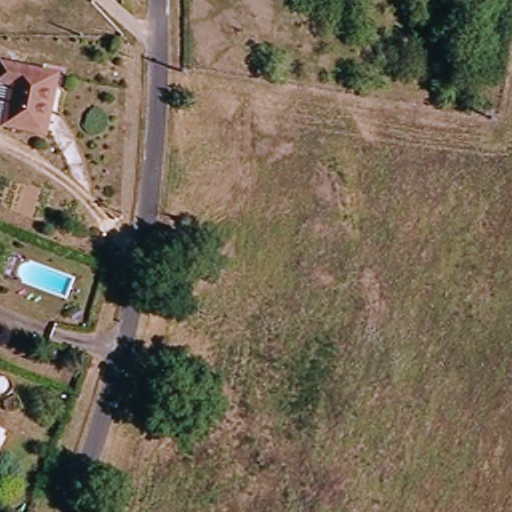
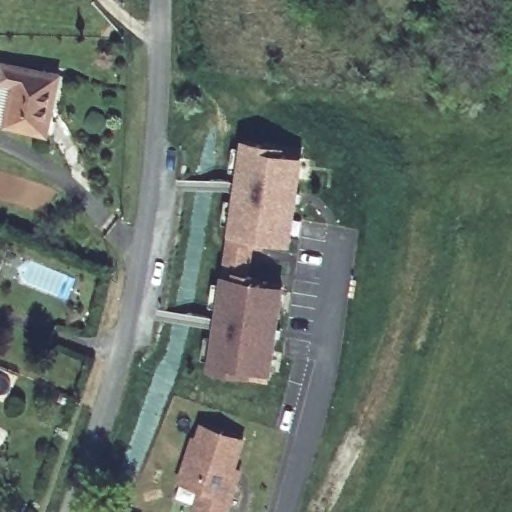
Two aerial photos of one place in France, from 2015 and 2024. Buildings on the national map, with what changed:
unchanged [(71,75),(54,134),(11,122),(22,79),(8,73),(13,58),(71,75)]
new [(292,246),(255,241),(251,265),(224,261),(241,139),(306,147),(292,246)]
new [(272,374),(254,372),(252,379),(207,371),(221,276),(286,284),(272,374)]
new [(237,467),(243,469),(229,512),(192,512),(199,490),(176,482),(191,436),(195,437),(199,423),(246,439),(237,467)]
unchanged [(3,428),(0,433),(0,426),(3,428)]

